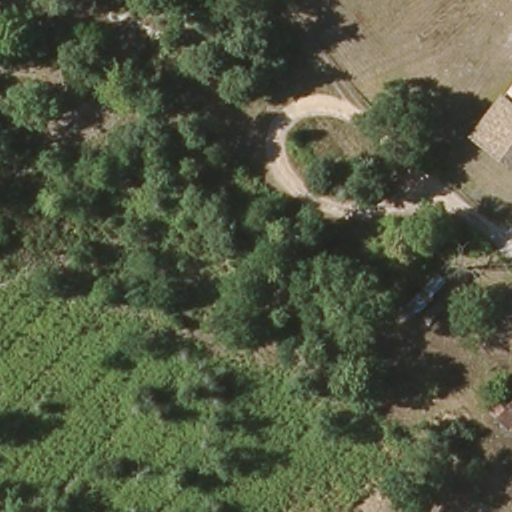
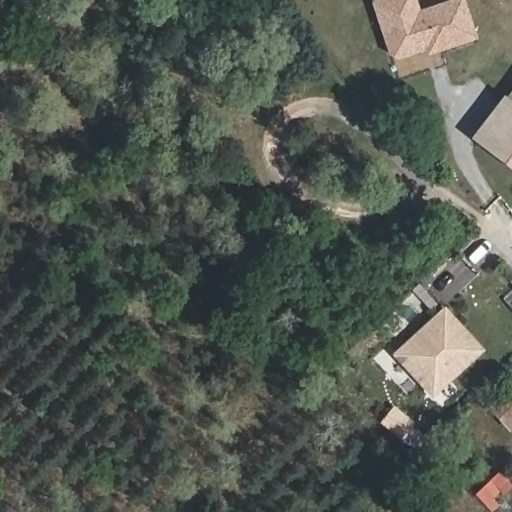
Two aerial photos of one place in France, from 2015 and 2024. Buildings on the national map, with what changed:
new [(426,50),(398,59),(390,54),(372,0),(416,0),(419,10),(448,0),(465,0),(478,37),(429,56),(426,50)]
unchanged [(480,132),(512,92),(512,159),(480,132)]
new [(432,398),(392,355),(445,305),(485,350),(432,398)]
unchanged [(499,411),(512,399),(512,425),(499,411)]

